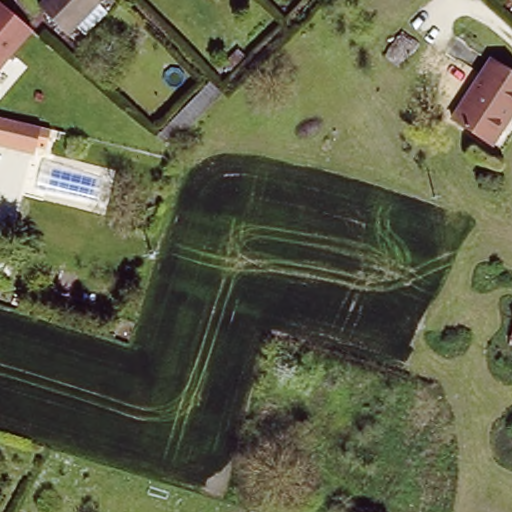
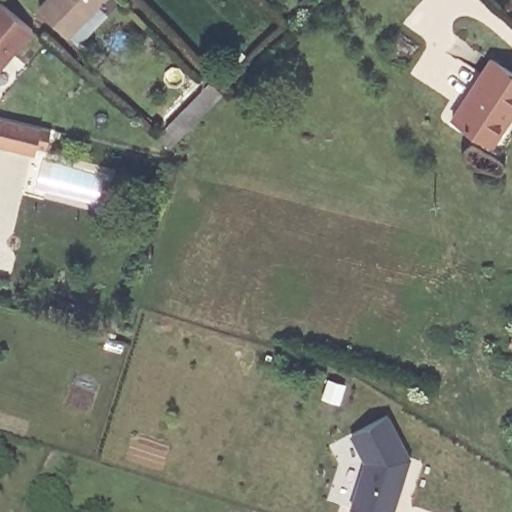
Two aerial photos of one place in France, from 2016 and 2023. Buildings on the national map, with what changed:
unchanged [(0,66),(0,0),(2,0),(32,28),(0,66)]
unchanged [(91,0),(65,27),(39,1),(39,0),(91,0)]
unchanged [(484,138),(452,115),(492,57),(512,70),(512,109),(489,142),(484,138)]
new [(209,82),(223,96),(172,148),(157,135),(209,82)]
unchanged [(0,115),(42,125),(36,152),(0,145),(0,115)]
unchanged [(496,341),(506,305),(512,307),(512,346),(496,341)]
new [(387,413),(410,457),(393,512),(362,512),(347,507),(363,463),(348,435),(387,413)]

